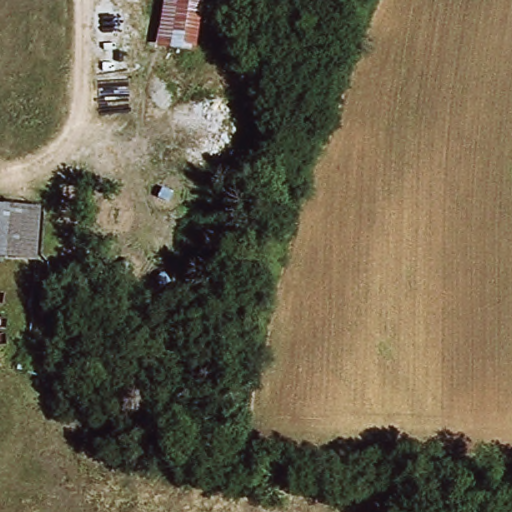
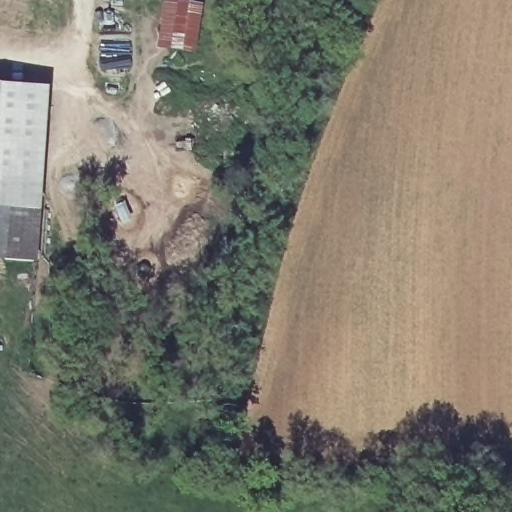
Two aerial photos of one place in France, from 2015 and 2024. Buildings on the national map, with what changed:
unchanged [(177,0),(204,4),(198,46),(162,41),(168,0),(177,0)]
unchanged [(216,49),(221,23),(248,28),(243,54),(216,49)]
new [(0,260),(0,83),(49,86),(38,262),(0,260)]
demolished [(0,205),(41,209),(40,261),(0,260),(0,205)]

